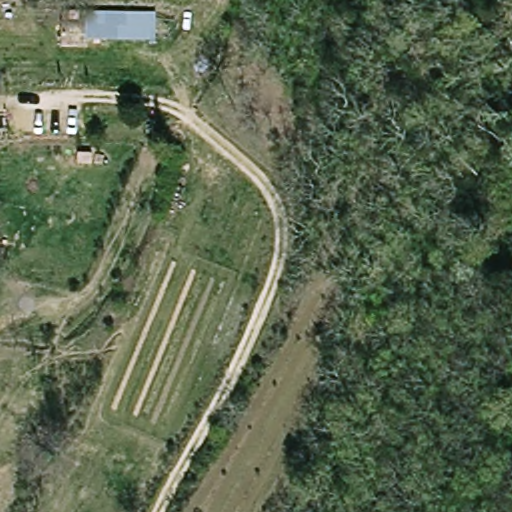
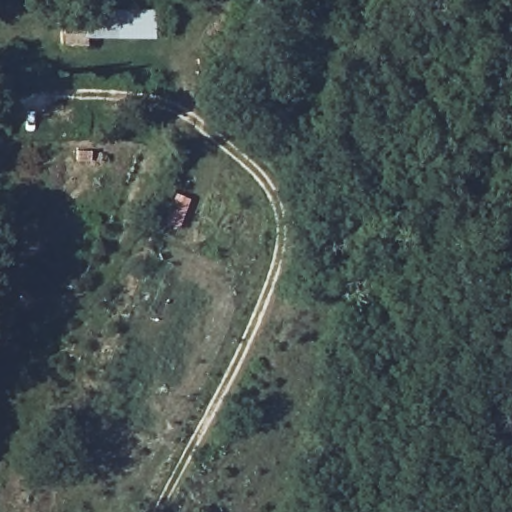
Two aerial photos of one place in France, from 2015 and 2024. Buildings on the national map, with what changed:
unchanged [(80,7),(155,8),(156,26),(148,27),(148,38),(83,41),(80,7)]

